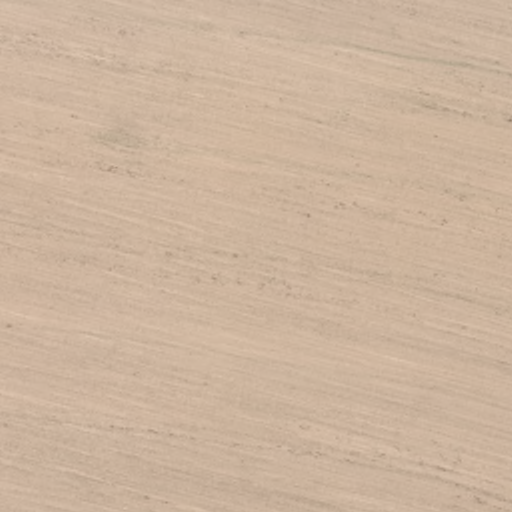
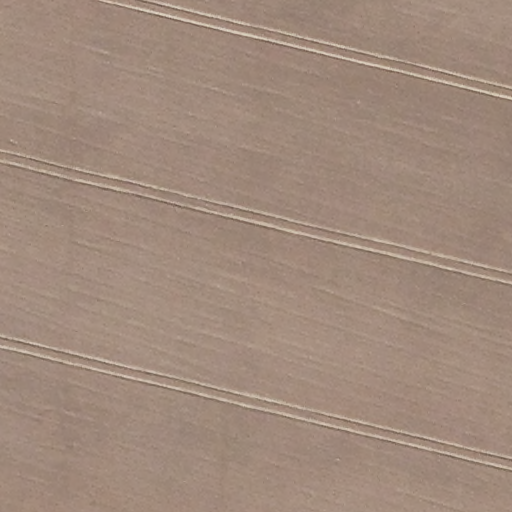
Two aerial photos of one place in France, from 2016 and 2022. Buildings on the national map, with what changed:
[]

